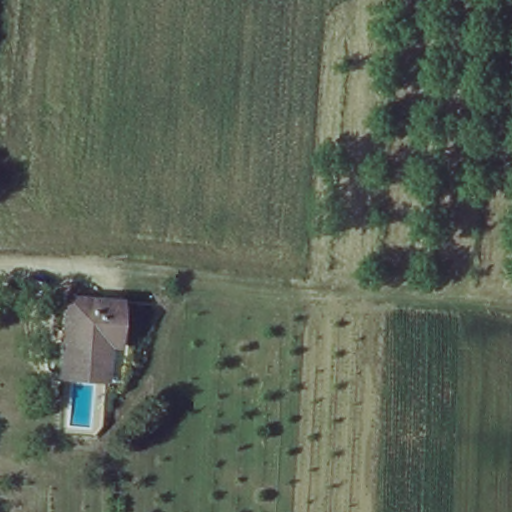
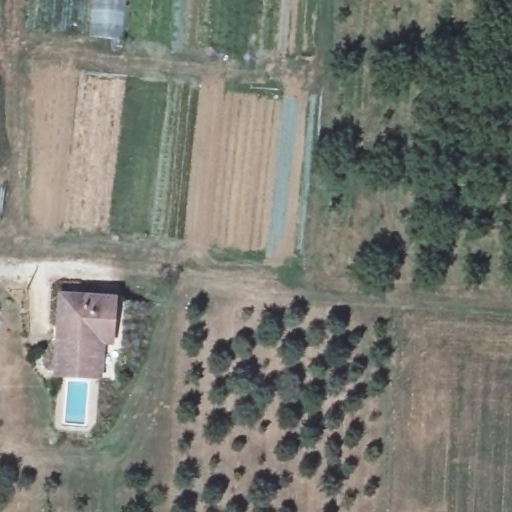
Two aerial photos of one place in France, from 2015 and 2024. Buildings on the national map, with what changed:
new [(89,7),(123,8),(123,3),(126,4),(124,39),(88,37),(89,7)]
unchanged [(115,303),(114,345),(103,344),(100,378),(58,375),(64,299),(115,303)]

